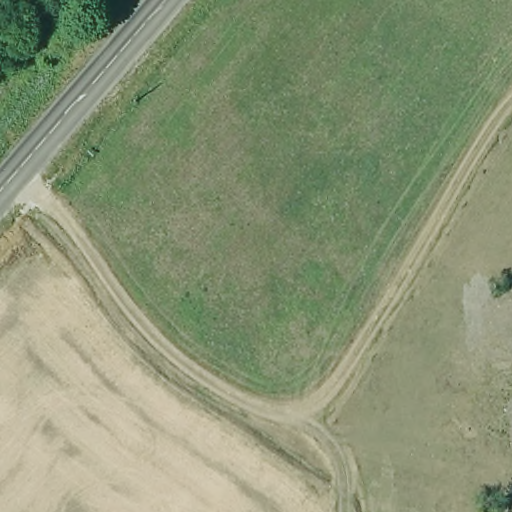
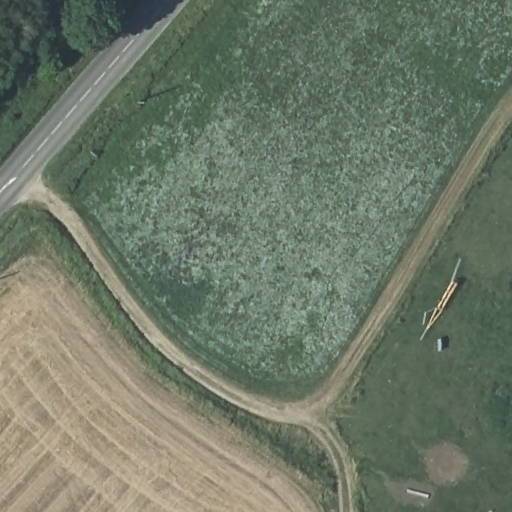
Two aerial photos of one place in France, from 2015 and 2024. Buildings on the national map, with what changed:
[]

